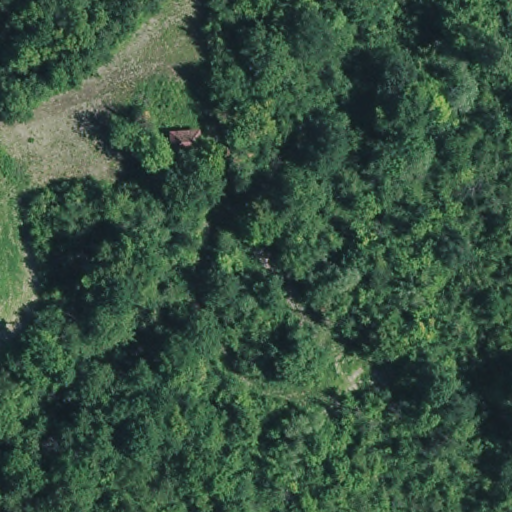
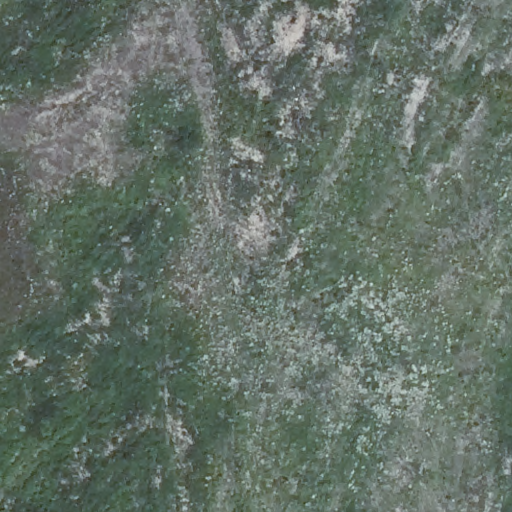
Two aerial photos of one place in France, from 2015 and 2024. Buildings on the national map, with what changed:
unchanged [(165,131),(172,131),(191,129),(192,146),(173,146),(165,146),(165,131)]

